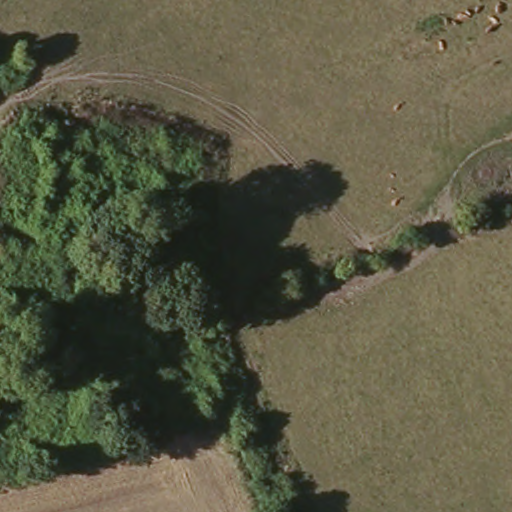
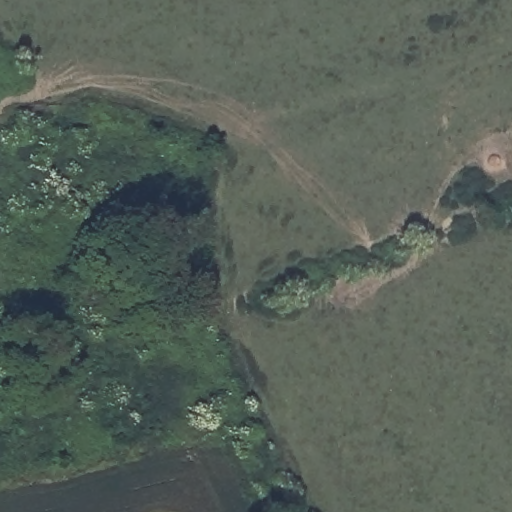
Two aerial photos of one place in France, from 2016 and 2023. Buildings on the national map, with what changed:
[]

